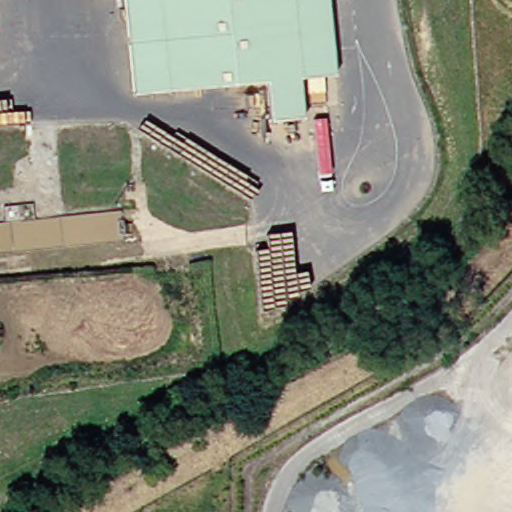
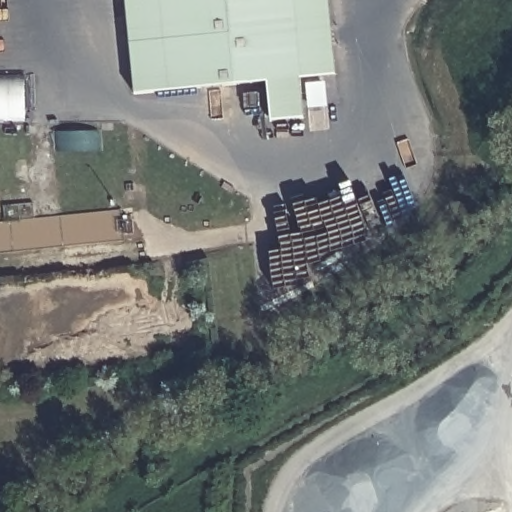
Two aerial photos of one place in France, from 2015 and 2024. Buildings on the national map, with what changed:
unchanged [(321,0),(328,71),(293,75),(297,114),(260,117),(257,80),(130,94),(119,0),(321,0)]
new [(25,121),(0,122),(0,72),(24,72),(25,121)]

